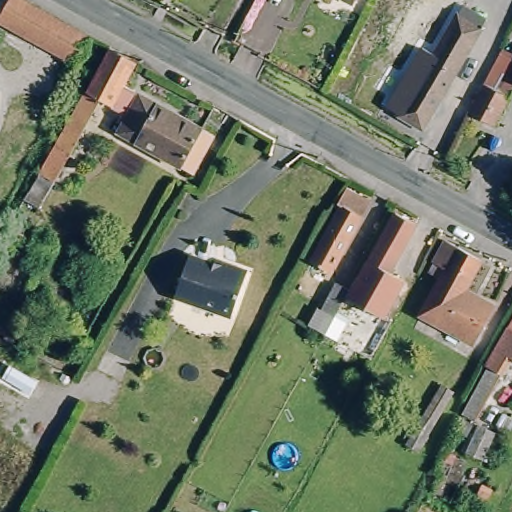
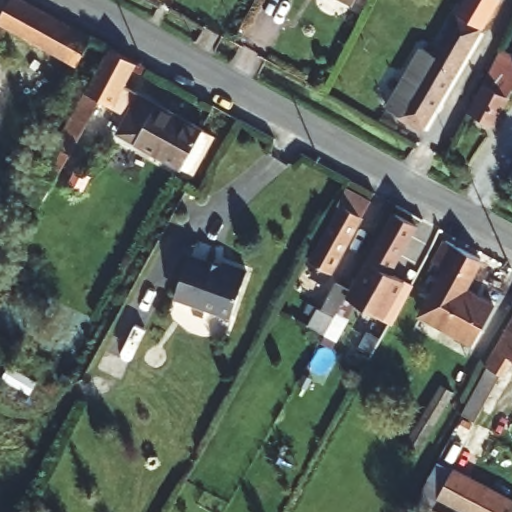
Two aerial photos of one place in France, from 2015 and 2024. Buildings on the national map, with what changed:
unchanged [(0,22),(0,15),(8,0),(22,0),(63,24),(88,38),(73,63),(0,22)]
unchanged [(341,0),(364,0),(358,10),(341,0)]
unchanged [(387,109),(422,49),(435,57),(463,7),(485,18),(421,129),(387,109)]
unchanged [(507,48),(512,51),(512,99),(497,127),(472,114),(507,48)]
unchanged [(125,88),(212,135),(193,172),(117,133),(127,115),(97,100),(43,200),(30,193),(109,49),(117,53),(137,63),(125,88)]
unchanged [(363,212),(365,213),(335,268),(315,256),(355,184),(374,194),(363,212)]
unchanged [(388,270),(403,278),(382,315),(348,295),(395,211),(415,222),(388,270)]
unchanged [(471,341),(420,313),(439,277),(427,270),(444,241),(478,260),(462,289),(490,304),(471,341)]
unchanged [(232,317),(179,297),(193,258),(226,271),(227,266),(249,275),(232,317)]
unchanged [(463,414),(488,365),(485,363),(509,326),(512,328),(512,359),(511,358),(502,374),(476,420),(463,414)]
unchanged [(455,390),(420,452),(407,443),(441,382),(455,390)]
new [(452,470),(512,502),(512,512),(471,512),(439,495),(452,470)]

